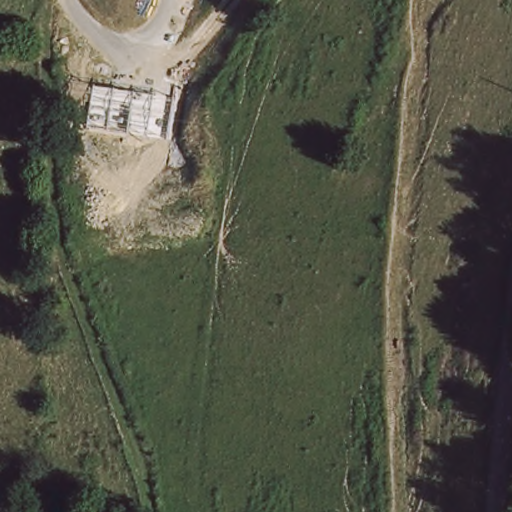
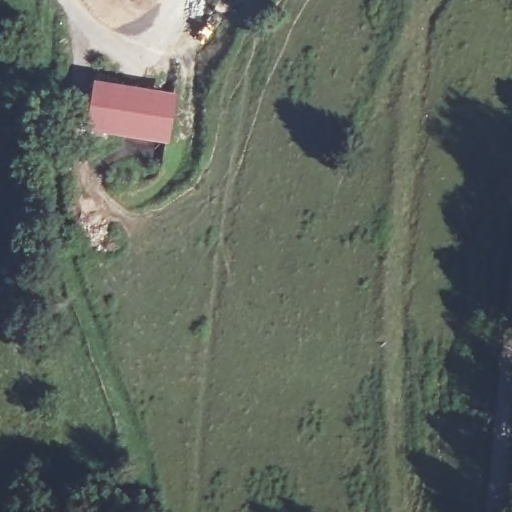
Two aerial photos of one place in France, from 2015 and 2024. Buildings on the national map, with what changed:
new [(93,81),(175,94),(167,142),(86,130),(93,81)]

